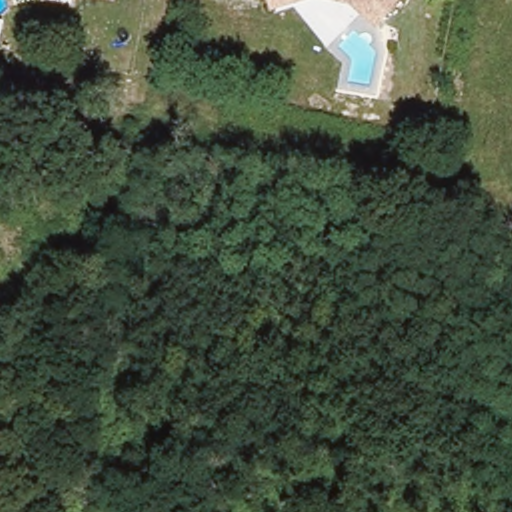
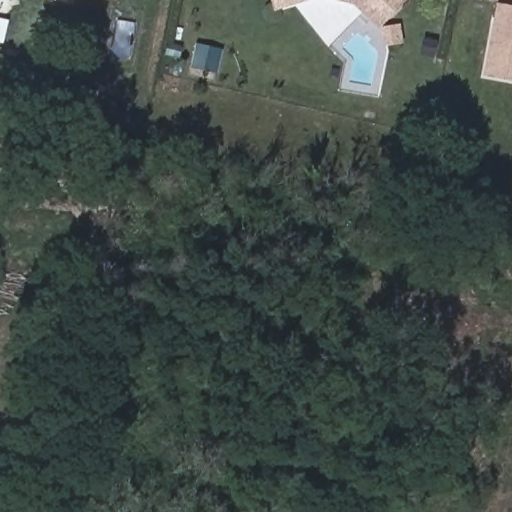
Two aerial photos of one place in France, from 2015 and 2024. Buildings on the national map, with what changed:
unchanged [(267,1),(266,0),(272,0),(267,1)]
unchanged [(373,16),(356,0),(387,0),(373,16)]
new [(495,3),(512,6),(512,81),(482,76),(495,3)]

